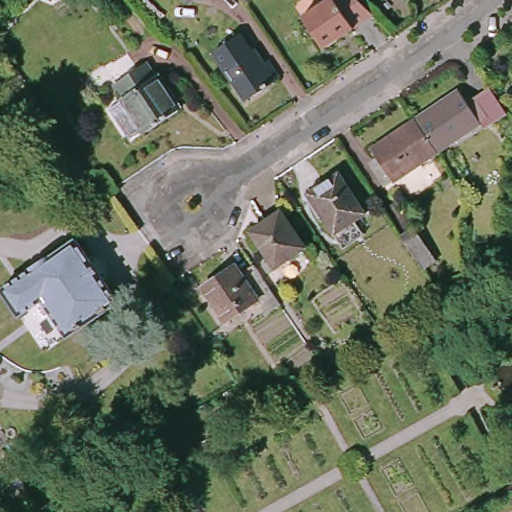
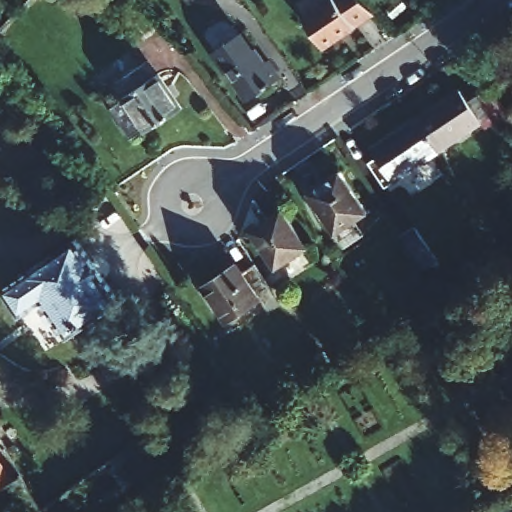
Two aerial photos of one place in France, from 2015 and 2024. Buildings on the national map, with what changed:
unchanged [(192,0),(196,0),(194,2),(192,0)]
unchanged [(325,41),(303,11),(318,0),(362,0),(370,9),(325,41)]
unchanged [(252,44),(248,47),(258,60),(265,55),(277,71),(248,94),(214,45),(238,27),(252,44)]
unchanged [(115,97),(120,93),(112,83),(120,75),(140,60),(149,73),(152,71),(176,104),(154,121),(142,131),(115,97)]
unchanged [(497,121),(492,113),(440,149),(429,131),(420,117),(464,87),(472,100),(495,87),(511,112),(501,119),(497,121)]
unchanged [(429,131),(440,149),(390,184),(375,164),(384,158),(376,146),(420,117),(429,131)]
unchanged [(363,204),(332,226),(303,187),(335,164),(363,204)]
unchanged [(296,236),(260,261),(254,254),(261,248),(242,222),(272,200),(296,236)]
unchanged [(412,224),(434,255),(424,264),(400,232),(412,224)]
unchanged [(114,298),(64,334),(46,309),(24,324),(0,290),(0,286),(70,236),(114,298)]
unchanged [(257,303),(247,289),(215,311),(192,277),(225,254),(230,261),(244,252),(273,293),(257,303)]
unchanged [(25,474),(48,508),(43,512),(36,512),(29,501),(15,480),(25,474)]
unchanged [(93,487),(85,494),(79,486),(88,479),(93,487)]

